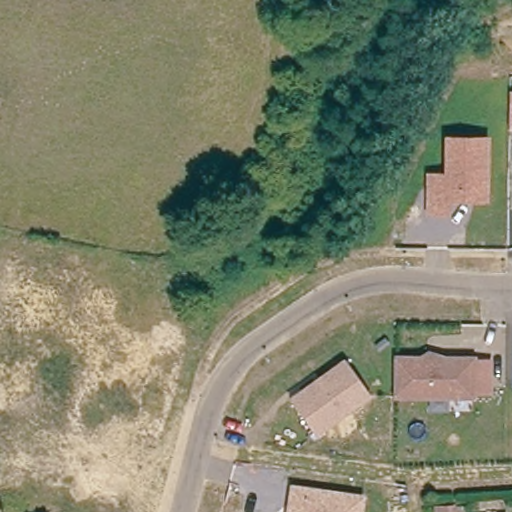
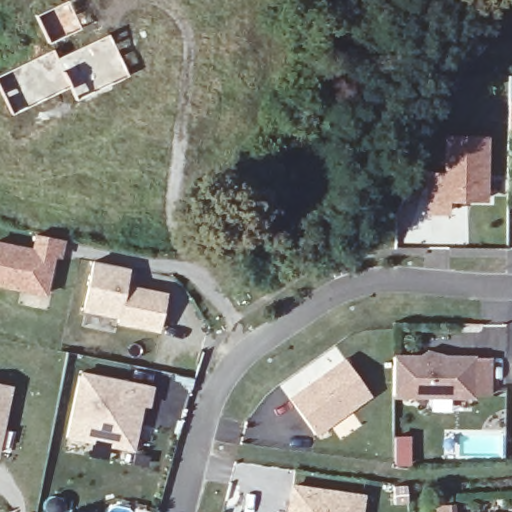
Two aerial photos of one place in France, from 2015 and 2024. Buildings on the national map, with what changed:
new [(79,26),(48,41),(33,14),(64,0),(67,0),(79,26)]
new [(108,33),(129,74),(76,100),(68,86),(12,114),(0,91),(0,73),(52,47),(57,57),(108,33)]
unchanged [(507,128),(508,89),(512,89),(512,129),(507,128)]
unchanged [(448,202),(449,215),(427,215),(426,173),(444,174),(445,136),(489,136),(487,202),(448,202)]
new [(38,234),(65,239),(61,255),(56,254),(48,294),(0,285),(0,243),(35,249),(38,234)]
new [(94,260),(130,268),(126,286),(165,294),(158,330),(118,322),(119,316),(85,309),(94,260)]
unchanged [(288,397),(343,356),(370,395),(315,435),(288,397)]
unchanged [(383,395),(383,380),(383,357),(463,358),(480,358),(480,394),(462,394),(462,395),(383,395)]
new [(153,386),(149,406),(143,405),(134,451),(109,446),(110,441),(94,438),(93,442),(66,437),(79,370),(153,386)]
new [(0,434),(0,385),(10,387),(0,434)]
unchanged [(361,495),(359,512),(289,512),(292,486),(361,495)]
unchanged [(455,503),(456,512),(434,512),(433,504),(455,503)]

